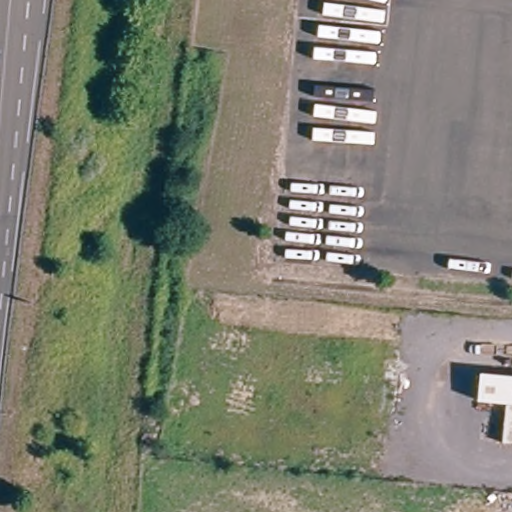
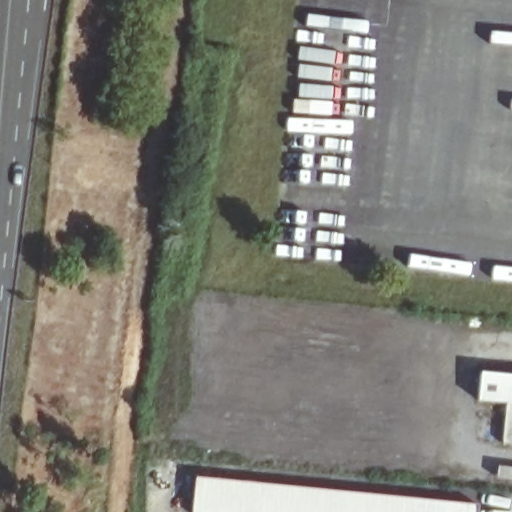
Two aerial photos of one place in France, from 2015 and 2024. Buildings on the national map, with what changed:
unchanged [(507,403),(479,400),(482,373),(512,376),(512,444),(503,443),(507,403)]
new [(478,506),(478,512),(192,512),(196,477),(478,506)]

